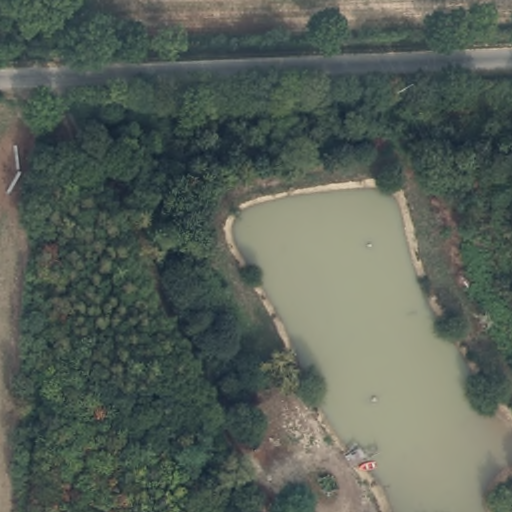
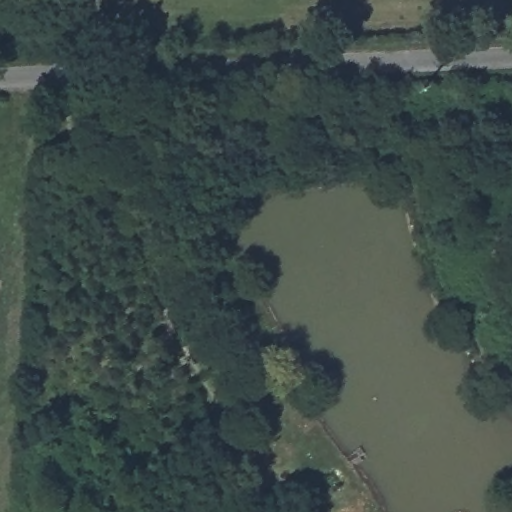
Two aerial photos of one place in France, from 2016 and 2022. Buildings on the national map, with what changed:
[]

